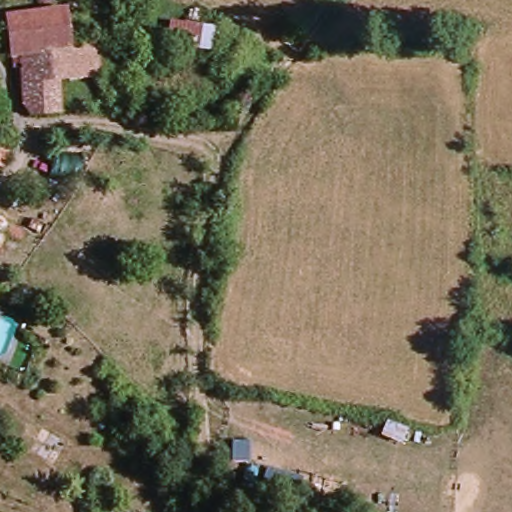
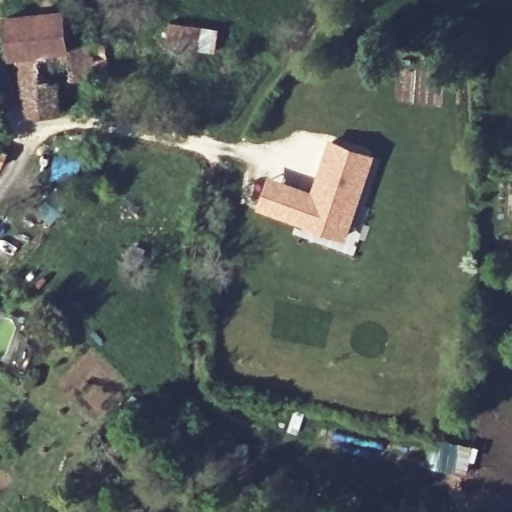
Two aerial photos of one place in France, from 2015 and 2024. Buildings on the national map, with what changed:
unchanged [(71,46),(22,53),(13,53),(9,22),(67,13),(71,46)]
unchanged [(165,46),(170,21),(220,30),(217,53),(165,46)]
unchanged [(22,53),(71,46),(105,43),(111,77),(61,82),(64,115),(50,116),(35,111),(28,101),(22,53)]
new [(266,174),(310,187),(329,136),(377,153),(348,238),(255,208),(266,174)]
unchanged [(0,151),(8,155),(4,165),(0,164),(0,151)]

